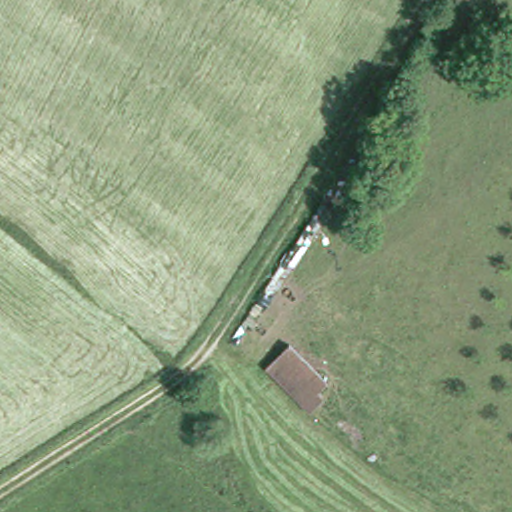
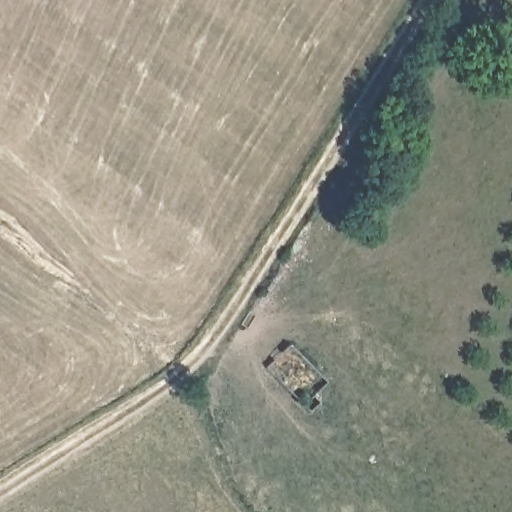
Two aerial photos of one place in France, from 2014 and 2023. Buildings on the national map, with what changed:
unchanged [(308,333),(343,377),(309,412),(267,365),(308,333)]

